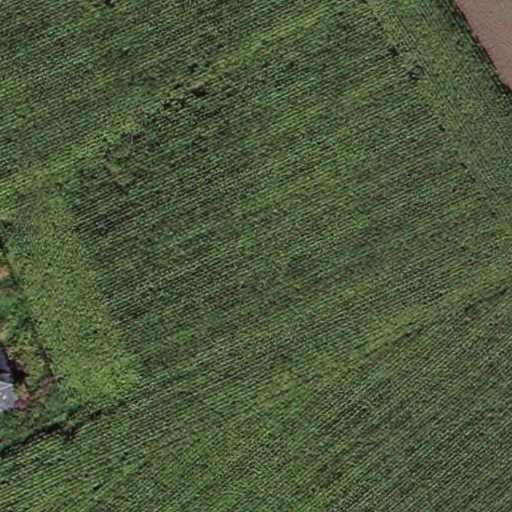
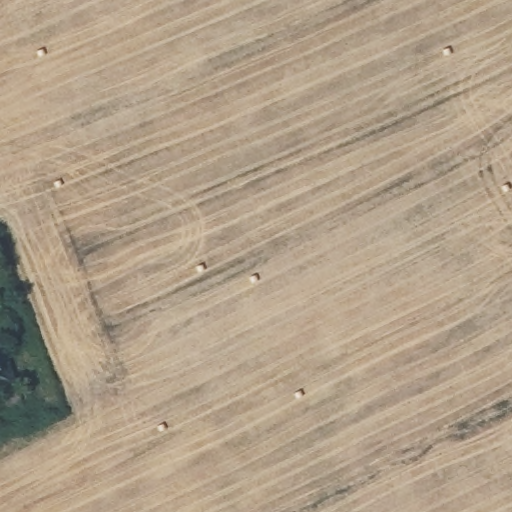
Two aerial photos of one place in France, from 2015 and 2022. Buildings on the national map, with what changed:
unchanged [(0,387),(0,349),(16,378),(0,387)]

